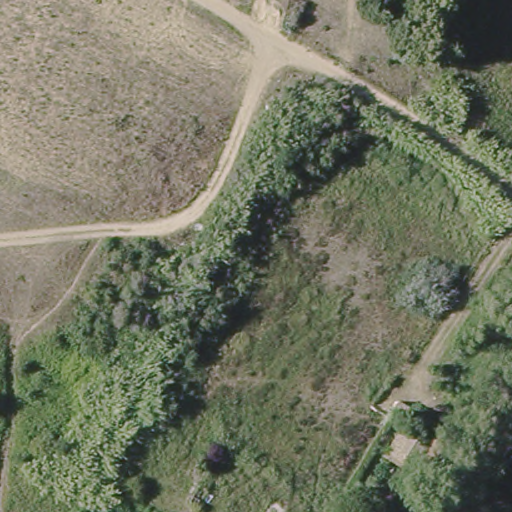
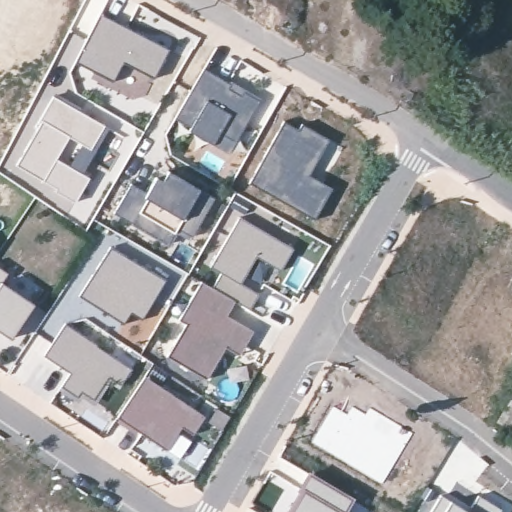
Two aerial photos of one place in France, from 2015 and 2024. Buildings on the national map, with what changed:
new [(153,78),(123,63),(113,81),(76,63),(101,16),(168,50),(153,78)]
new [(213,144),(189,131),(191,128),(175,118),(204,69),(231,84),(228,88),(241,96),(244,92),(260,101),(236,142),(229,154),(213,144)]
new [(55,191),(56,188),(17,165),(43,121),(40,120),(54,97),(105,126),(109,129),(83,173),(90,177),(74,202),(55,191)]
new [(314,218),(251,183),(285,123),(300,131),(303,127),(328,141),(308,176),(332,191),(314,218)]
new [(114,213),(131,184),(147,193),(156,177),(163,181),(168,171),(215,198),(192,237),(177,229),(174,234),(168,245),(132,225),(133,224),(114,213)]
new [(281,272),(256,258),(241,285),(259,295),(251,309),(235,302),(214,290),(222,274),(212,267),(240,220),(292,250),(281,272)]
new [(141,320),(130,313),(123,323),(81,298),(112,249),(166,281),(141,320)]
new [(16,280),(10,289),(34,305),(11,339),(0,333),(0,269),(16,280)]
new [(184,326),(178,322),(201,282),(235,302),(227,316),(240,324),(207,381),(166,358),(184,326)]
new [(66,323),(67,323),(133,369),(122,385),(109,377),(93,401),(81,393),(77,398),(61,387),(70,374),(44,356),(66,323)]
new [(145,377),(205,417),(193,435),(182,428),(166,451),(117,419),(145,377)]
unchanged [(512,400),(512,401),(512,433),(497,423),(512,400)]
new [(348,413),(354,405),(365,412),(370,406),(413,431),(383,481),(312,441),(334,406),(348,413)]
demolished [(430,455),(435,458),(429,470),(414,460),(402,453),(399,458),(380,447),(395,425),(423,441),(427,433),(439,440),(430,455)]
new [(424,478),(385,454),(400,430),(427,446),(434,437),(445,443),(424,478)]
new [(343,512),(292,512),(303,493),(299,491),(308,475),(353,500),(343,512)]
new [(468,509),(479,493),(503,508),(500,512),(429,512),(440,492),(468,509)]

